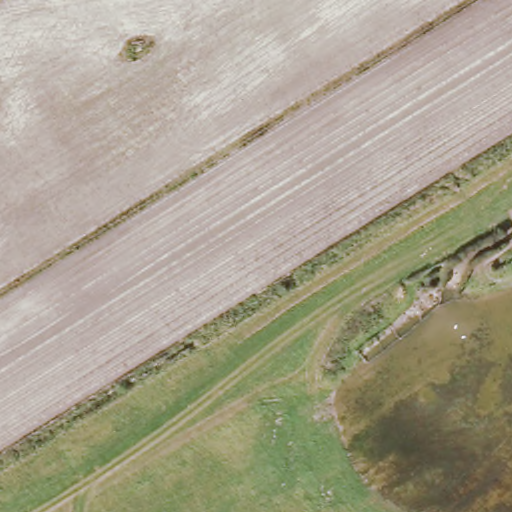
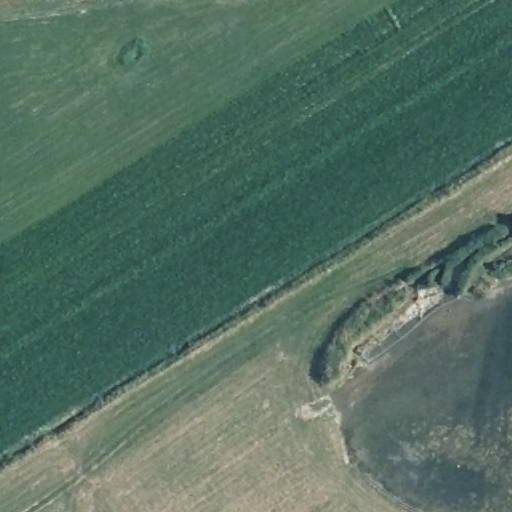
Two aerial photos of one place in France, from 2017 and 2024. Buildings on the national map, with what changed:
[]

